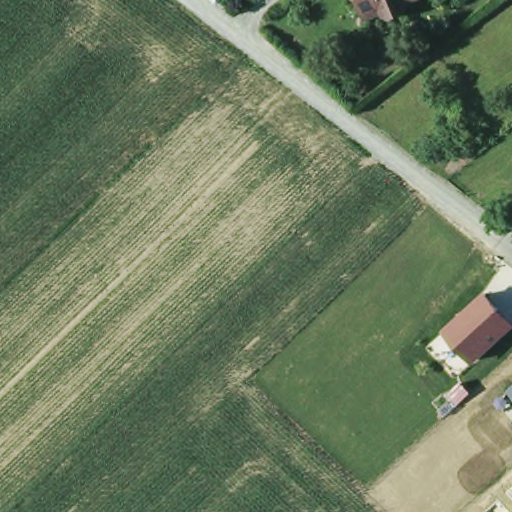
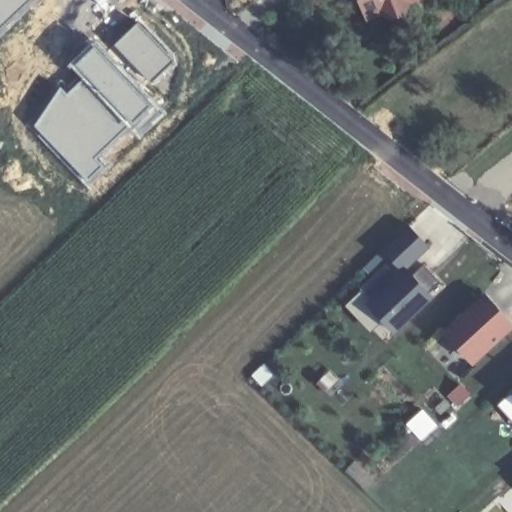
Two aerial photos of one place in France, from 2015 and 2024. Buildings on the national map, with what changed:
new [(0,0),(38,0),(0,37),(0,0)]
unchanged [(406,11),(391,18),(384,15),(382,10),(366,17),(358,0),(405,0),(407,5),(406,11)]
new [(139,19),(178,60),(150,86),(112,46),(139,19)]
new [(60,84),(67,90),(81,76),(67,62),(96,37),(167,112),(140,137),(132,129),(102,158),(109,165),(87,186),(30,126),(60,84)]
new [(429,293),(435,297),(396,335),(382,323),(376,328),(354,304),(364,294),(361,290),(390,262),(382,252),(408,226),(429,248),(407,270),(414,277),(426,266),(442,283),(429,293)]
unchanged [(440,331),(482,293),(512,325),(512,330),(472,365),(440,331)]
unchanged [(506,389),(512,382),(512,395),(506,389)]

